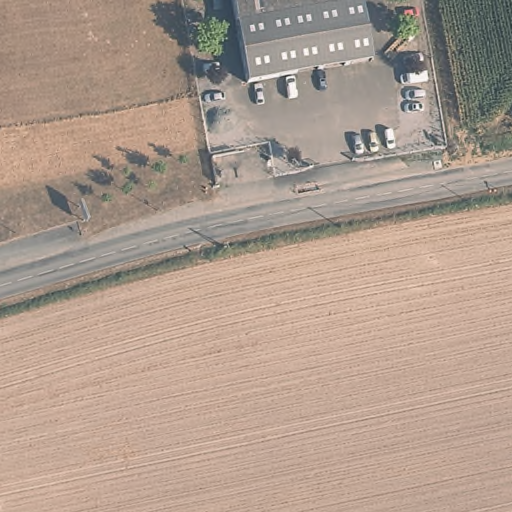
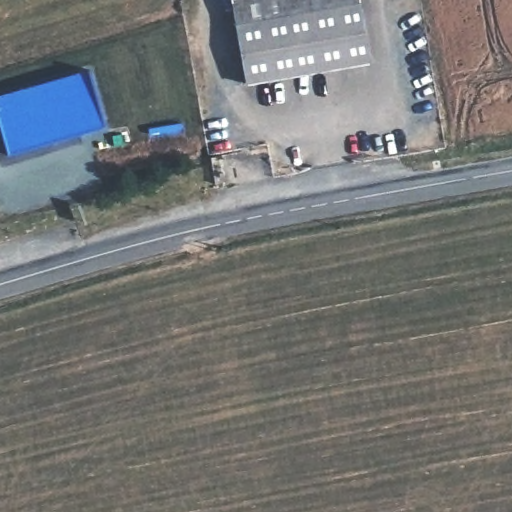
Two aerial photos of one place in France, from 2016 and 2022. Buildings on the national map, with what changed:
unchanged [(246,86),(232,0),(359,0),(370,65),(246,86)]
new [(105,126),(9,153),(0,125),(0,95),(90,71),(105,126)]

